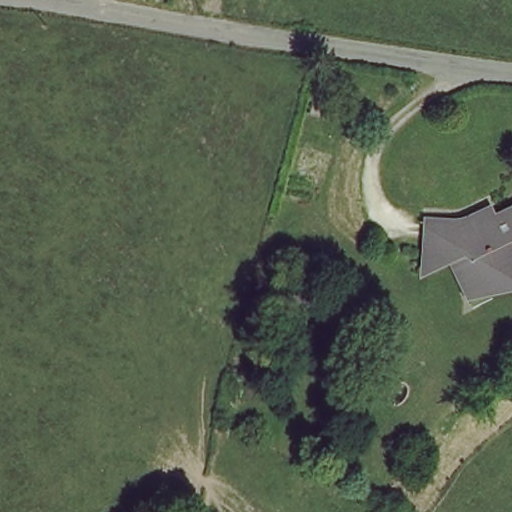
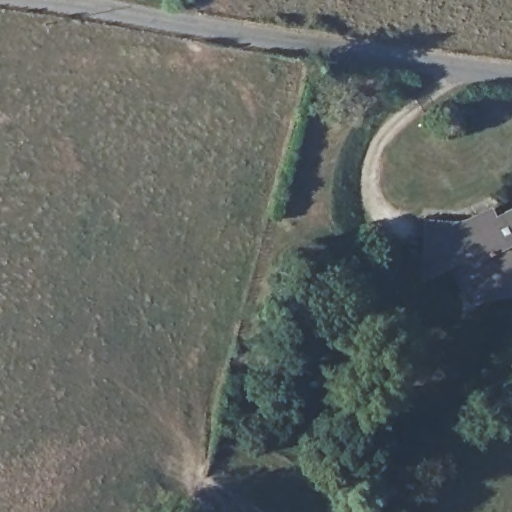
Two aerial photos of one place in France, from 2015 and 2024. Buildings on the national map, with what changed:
unchanged [(468,232),(504,224),(510,231),(512,229),(512,302),(505,305),(497,295),(474,302),(462,272),(432,281),(424,235),(468,232)]

